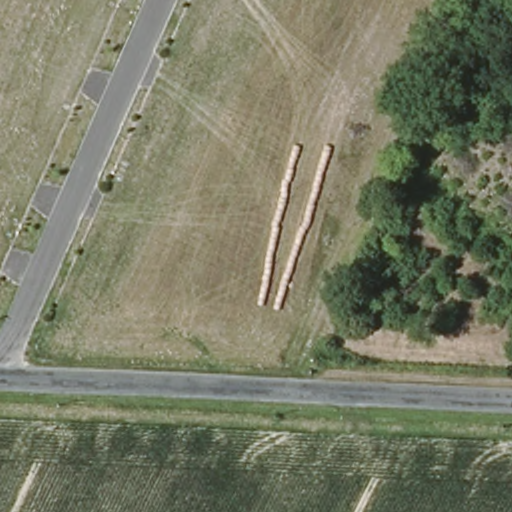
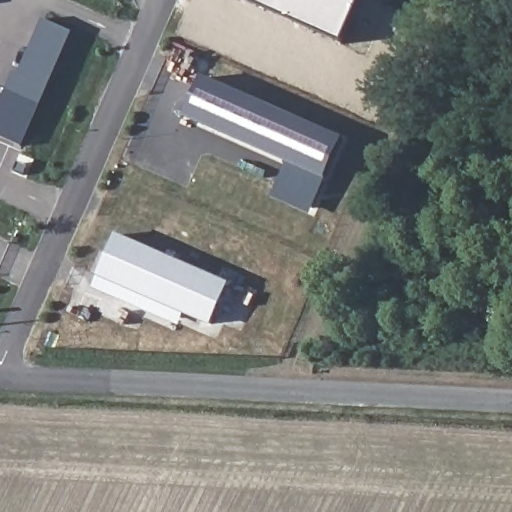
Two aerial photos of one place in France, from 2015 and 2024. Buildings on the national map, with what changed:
new [(362,0),(343,43),(245,0),(362,0)]
new [(21,75),(26,77),(50,22),(78,34),(45,107),(14,93),(21,75)]
new [(344,138),(326,180),(185,118),(203,76),(344,138)]
new [(14,93),(45,107),(27,149),(0,137),(0,125),(14,93)]
new [(326,180),(310,214),(272,197),(288,163),(326,180)]
new [(212,326),(99,277),(117,233),(231,283),(212,326)]

